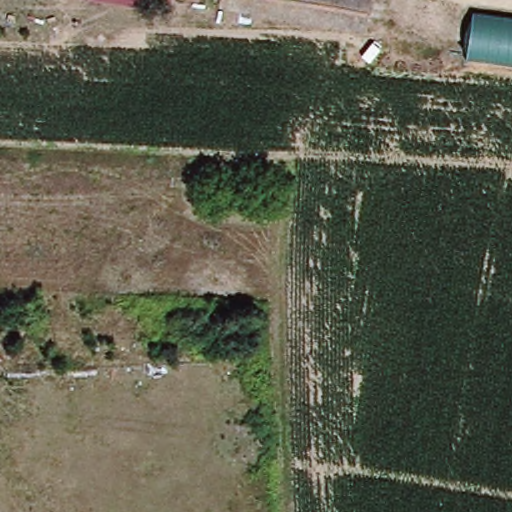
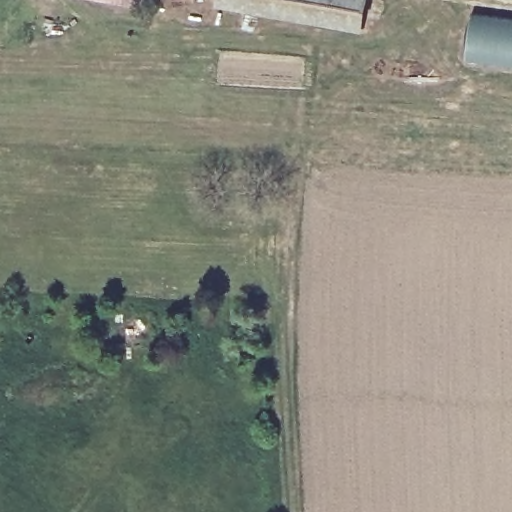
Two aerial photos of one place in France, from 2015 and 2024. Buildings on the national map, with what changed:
unchanged [(231,0),(376,0),(370,28),(231,0)]
unchanged [(512,14),(512,64),(472,59),(482,10),(512,14)]

